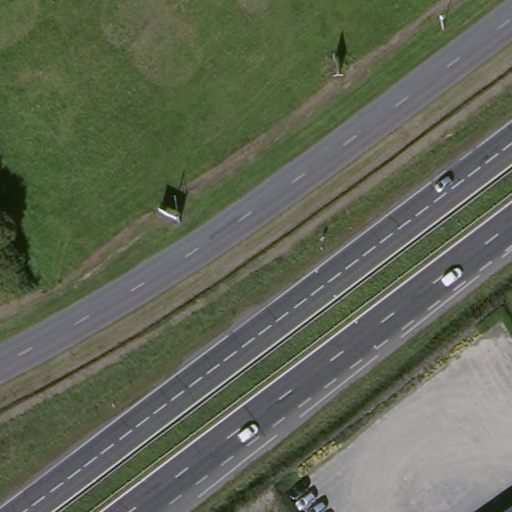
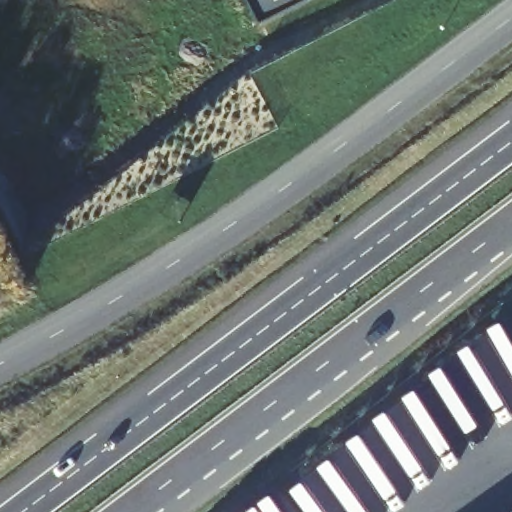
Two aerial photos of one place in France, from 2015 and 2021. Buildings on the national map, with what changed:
new [(250,0),(308,0),(261,24),(250,0)]

